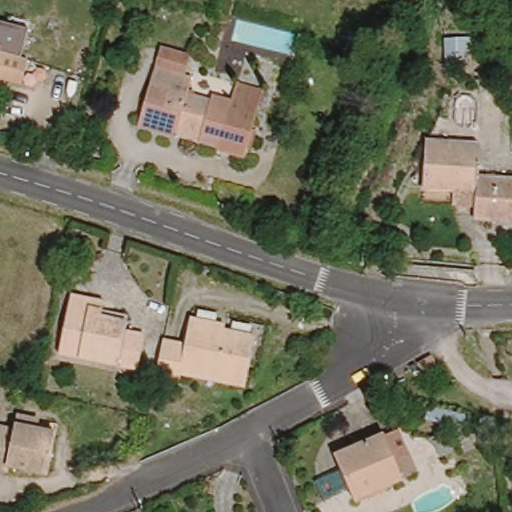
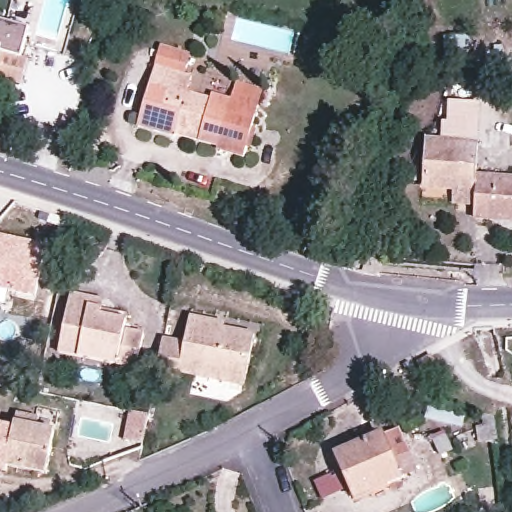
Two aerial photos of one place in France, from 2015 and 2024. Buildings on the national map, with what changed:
unchanged [(4,36),(2,42),(30,51),(21,76),(0,70),(0,35),(4,36)]
unchanged [(147,69),(153,49),(180,56),(177,65),(173,75),(185,79),(182,89),(206,97),(207,91),(228,99),(215,143),(193,136),(195,133),(170,125),(167,135),(147,129),(130,124),(131,119),(147,69)]
unchanged [(233,81),(260,89),(257,100),(240,154),(214,147),(215,143),(228,99),(230,92),(233,81)]
unchanged [(467,118),(465,130),(452,129),(453,117),(467,118)]
unchanged [(420,143),(422,143),(472,147),(470,175),(468,192),(415,187),(420,148),(420,143)]
unchanged [(468,192),(470,175),(512,179),(512,224),(465,219),(468,192)]
new [(36,297),(0,289),(0,235),(47,245),(36,297)]
unchanged [(43,356),(54,305),(56,294),(86,300),(85,310),(128,319),(127,324),(119,369),(43,356)]
unchanged [(215,325),(252,334),(247,356),(242,383),(180,371),(178,379),(154,374),(161,337),(181,340),(186,314),(215,319),(215,325)]
unchanged [(0,461),(0,426),(7,428),(9,421),(12,409),(30,414),(27,426),(50,431),(37,471),(0,461)]
unchanged [(335,496),(319,461),(366,439),(383,431),(394,456),(401,474),(384,482),(371,488),(338,504),(335,496)]

